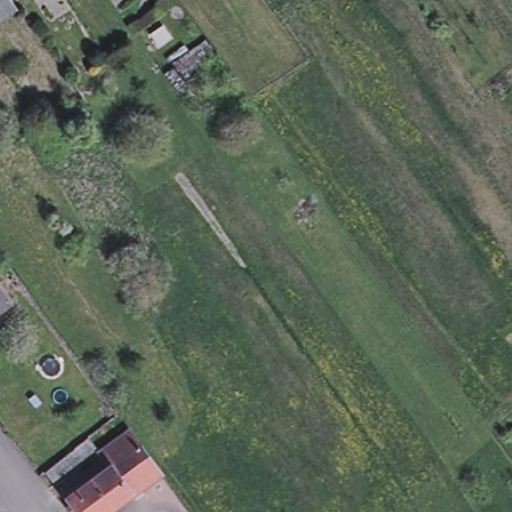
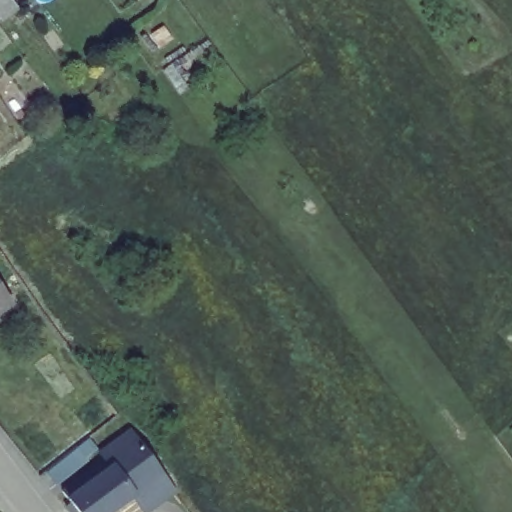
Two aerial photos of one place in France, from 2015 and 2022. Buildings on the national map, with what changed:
unchanged [(14,4),(0,14),(0,0),(11,0),(14,4)]
unchanged [(9,303),(0,309),(0,290),(9,303)]
unchanged [(110,468),(106,462),(135,441),(167,483),(129,512),(77,512),(68,500),(110,468)]
unchanged [(62,492),(53,480),(80,458),(93,448),(101,458),(88,468),(90,470),(62,492)]

